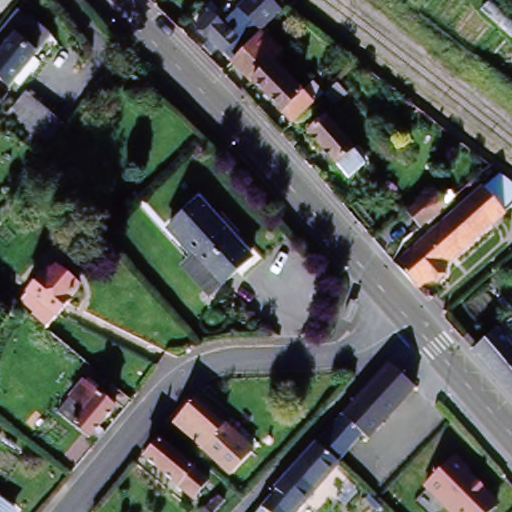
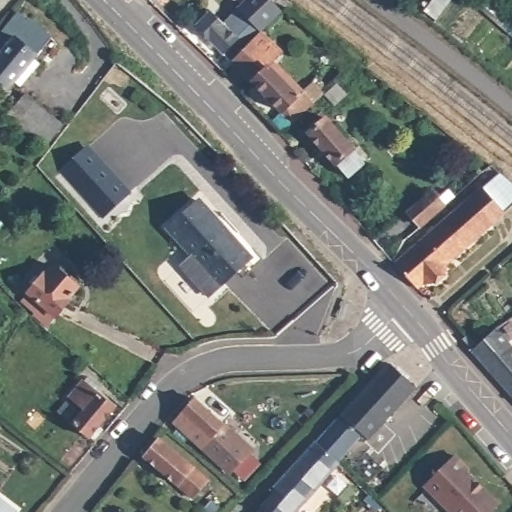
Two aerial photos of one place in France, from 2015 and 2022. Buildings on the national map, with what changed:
unchanged [(215,8),(230,22),(251,0),(270,0),(281,11),(236,57),(200,22),(215,8)]
unchanged [(33,17),(35,15),(56,34),(15,84),(0,71),(0,38),(24,10),(33,17)]
unchanged [(340,79),(317,100),(292,125),(280,111),(285,106),(239,59),(266,30),(283,49),(272,60),(280,68),(285,64),(305,85),(301,90),(304,94),(308,90),(330,69),(340,79)]
unchanged [(342,81),(351,90),(340,102),(330,94),(342,81)]
unchanged [(47,149),(21,126),(12,118),(31,95),(40,102),(67,125),(47,149)]
unchanged [(325,120),(365,165),(349,179),(310,135),(325,120)]
new [(131,189),(105,214),(63,169),(90,145),(131,189)]
unchanged [(461,247),(452,247),(442,257),(443,259),(445,261),(447,265),(447,268),(447,271),(445,275),(443,277),(441,279),(438,280),(435,281),(431,281),(428,280),(425,276),(417,284),(395,260),(499,170),(512,181),(512,201),(461,247)]
unchanged [(408,210),(431,189),(439,196),(448,187),(454,194),(421,224),(408,210)]
unchanged [(210,296),(183,266),(194,255),(170,227),(199,200),(252,260),(210,296)]
unchanged [(53,265),(58,269),(62,263),(83,282),(73,294),(76,297),(53,323),(40,311),(41,309),(27,296),(53,265)]
unchanged [(500,327),(510,321),(512,324),(512,348),(511,348),(512,350),(512,395),(472,351),(463,340),(467,336),(477,347),(487,338),(500,327)]
unchanged [(415,388),(368,440),(362,435),(338,462),(318,443),(390,365),(415,388)]
unchanged [(98,423),(101,425),(91,436),(65,413),(73,404),(67,398),(85,377),(88,373),(100,383),(97,387),(115,403),(98,423)]
unchanged [(196,395),(251,447),(230,470),(173,419),(196,395)]
unchanged [(209,476),(193,494),(145,453),(161,436),(209,476)]
unchanged [(276,490),(318,443),(338,462),(337,463),(295,512),(259,512),(277,491),(276,490)]
unchanged [(497,500),(485,512),(451,512),(425,485),(456,456),(497,500)]
unchanged [(0,512),(0,501),(14,512),(0,512)]
unchanged [(203,503),(213,512),(200,512),(198,510),(203,503)]

